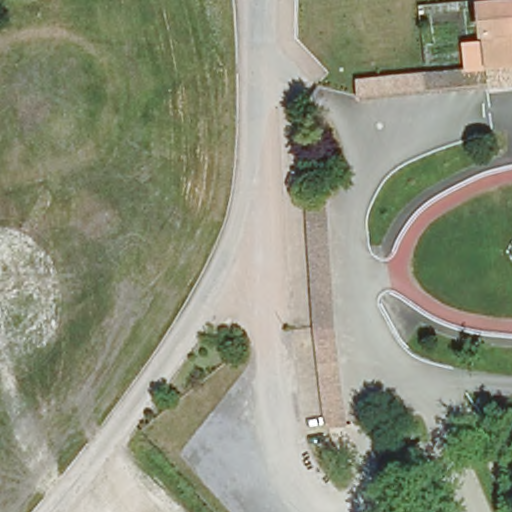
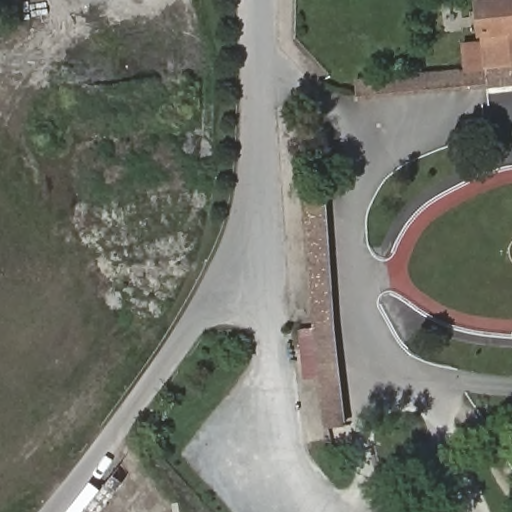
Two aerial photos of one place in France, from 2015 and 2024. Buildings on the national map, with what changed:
unchanged [(491,72),(478,73),(476,54),(492,53),(486,0),(512,0),(512,87),(494,89),(491,72)]
unchanged [(362,103),(360,85),(478,73),(491,72),(494,89),(362,103)]
unchanged [(350,450),(347,430),(337,432),(321,332),(313,209),(313,208),(331,208),(337,332),(353,429),(375,426),(377,447),(350,450)]
unchanged [(431,512),(401,452),(426,440),(454,512),(431,512)]

